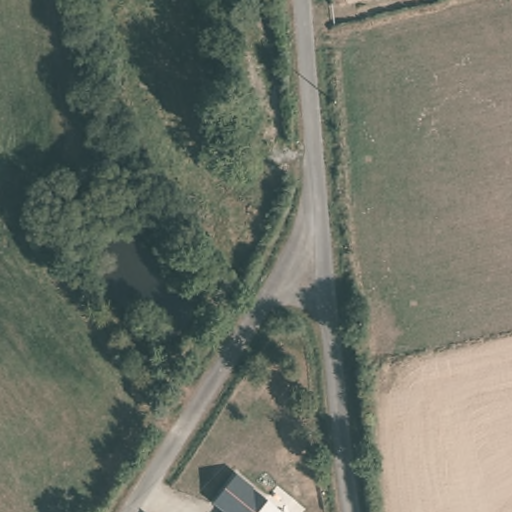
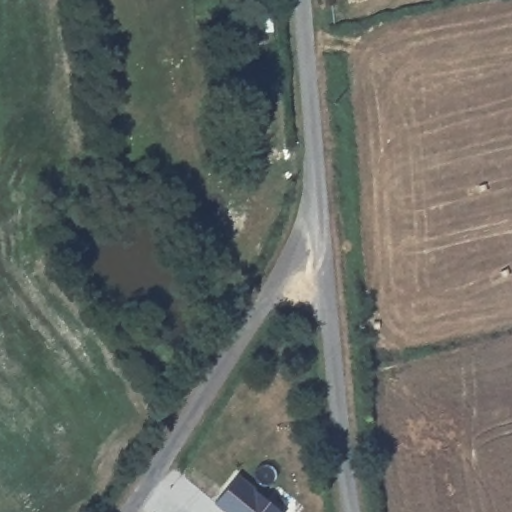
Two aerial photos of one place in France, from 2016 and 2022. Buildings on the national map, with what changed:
unchanged [(284,512),(283,512),(225,512),(214,502),(237,473),(284,512)]

